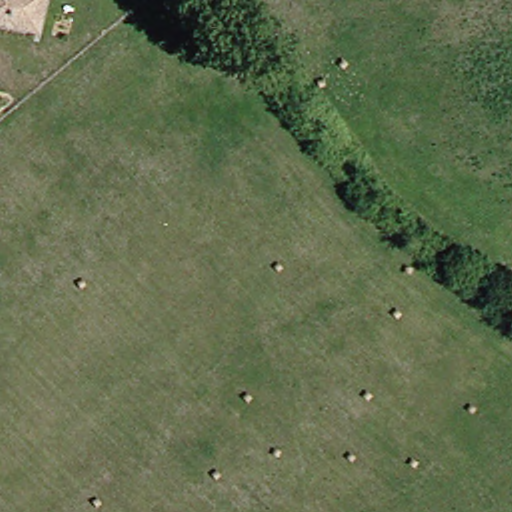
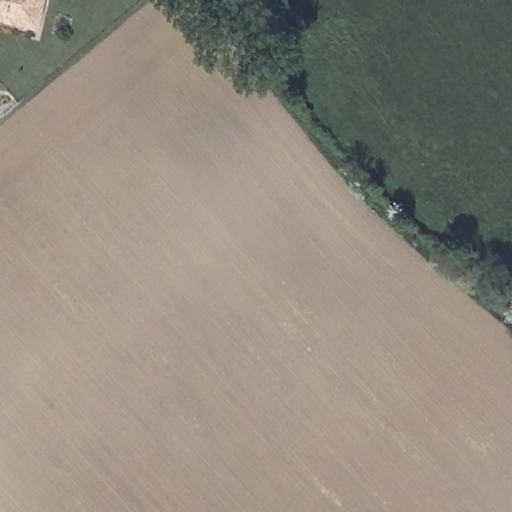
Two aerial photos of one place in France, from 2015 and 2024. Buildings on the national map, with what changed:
unchanged [(0,13),(0,0),(54,0),(44,28),(0,13)]

